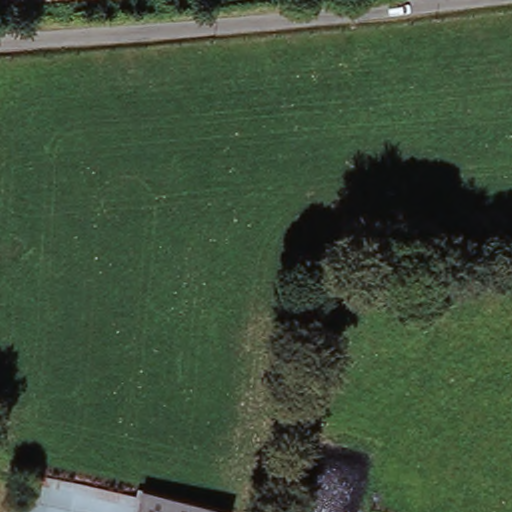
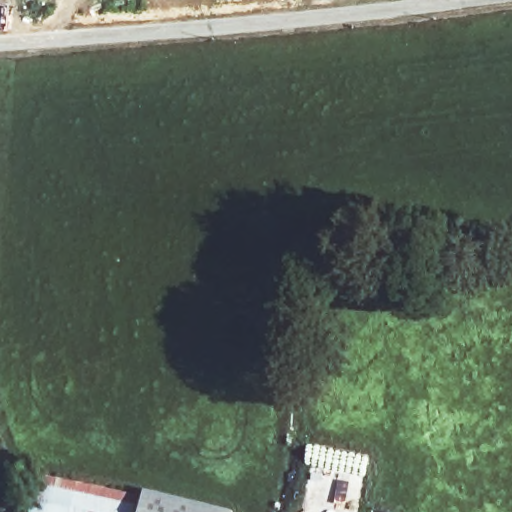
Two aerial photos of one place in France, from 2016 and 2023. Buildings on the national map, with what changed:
unchanged [(144,499),(141,512),(36,512),(42,476),(144,499)]
unchanged [(144,499),(200,512),(141,512),(144,499)]

